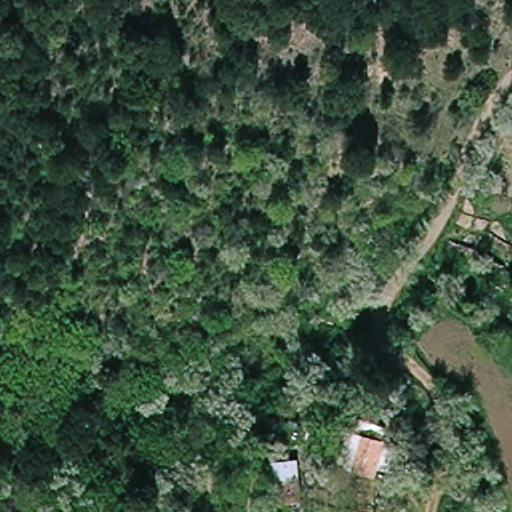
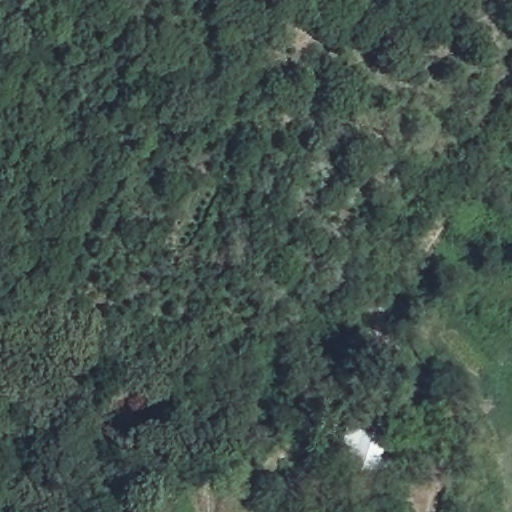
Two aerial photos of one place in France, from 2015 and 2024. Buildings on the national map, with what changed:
unchanged [(384,480),(347,478),(349,439),(387,441),(384,480)]
unchanged [(298,456),(301,499),(275,500),(271,460),(298,456)]
unchanged [(148,512),(155,510),(156,512),(148,512)]

